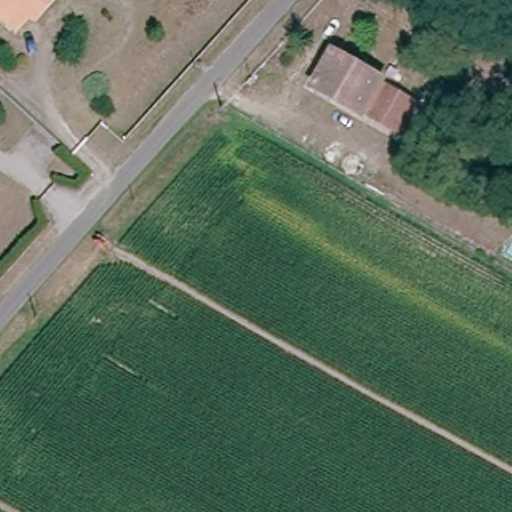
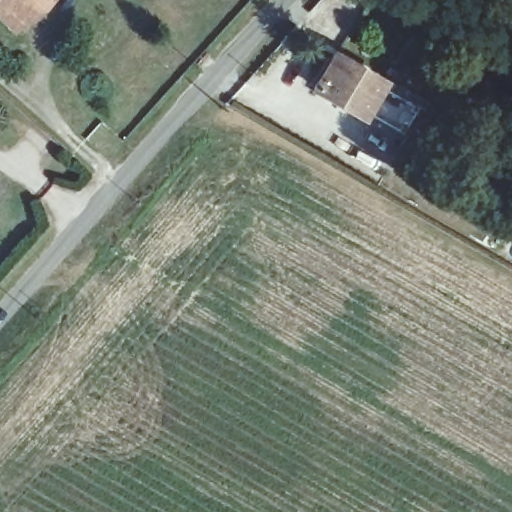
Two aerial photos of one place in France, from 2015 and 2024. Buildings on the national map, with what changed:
unchanged [(38,4),(35,1),(31,6),(26,2),(21,7),(26,11),(10,29),(0,20),(0,0),(41,0),(38,4)]
unchanged [(367,118),(362,122),(313,96),(332,61),(384,88),(381,95),(412,113),(398,137),(367,118)]
unchanged [(390,71),(397,75),(393,83),(385,79),(390,71)]

